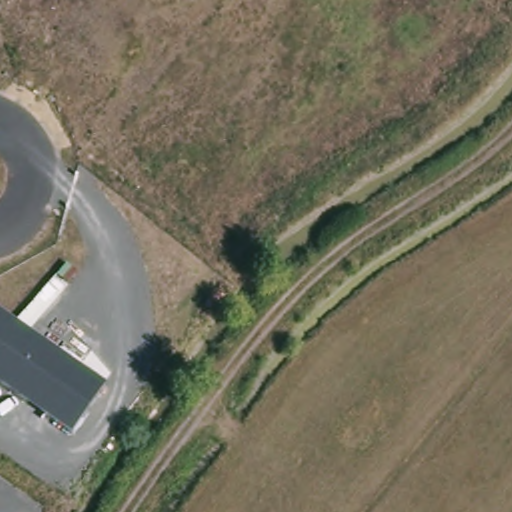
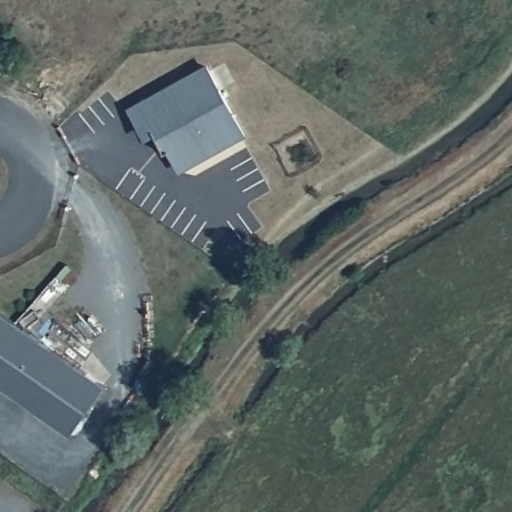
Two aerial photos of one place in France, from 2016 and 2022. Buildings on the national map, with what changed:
new [(179,173),(158,135),(147,141),(128,109),(209,65),(248,136),(179,173)]
unchanged [(105,387),(71,437),(0,387),(0,314),(105,387)]

